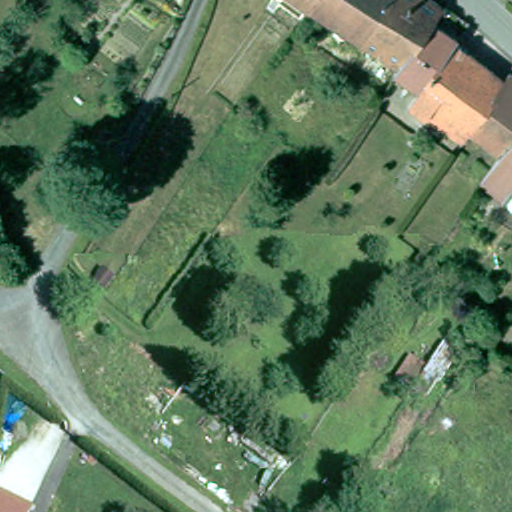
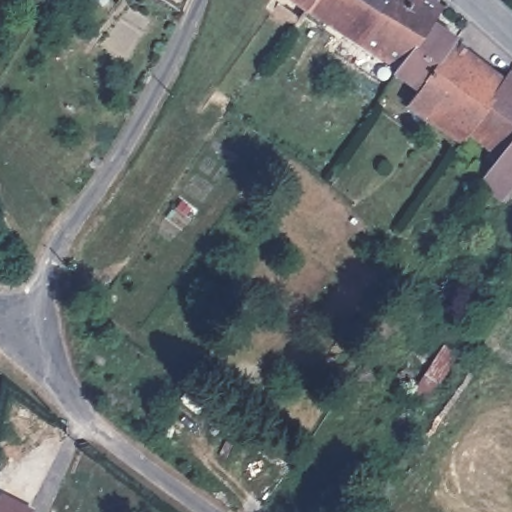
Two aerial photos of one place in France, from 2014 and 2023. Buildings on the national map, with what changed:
unchanged [(310,0),(305,7),(293,0),(310,0)]
unchanged [(305,7),(310,0),(435,0),(442,5),(432,18),(396,67),(305,7)]
unchanged [(455,140),(403,101),(414,86),(393,71),(396,67),(432,18),(456,36),(454,39),(502,75),(462,130),(455,140)]
unchanged [(507,67),(512,71),(512,132),(495,154),(492,151),(462,130),(502,75),(507,67)]
unchanged [(490,185),(507,162),(495,154),(512,132),(512,182),(510,186),(504,195),(490,185)]
unchanged [(510,186),(512,182),(512,187),(510,186)]
unchanged [(0,495),(2,492),(33,507),(30,512),(0,512),(0,495)]

